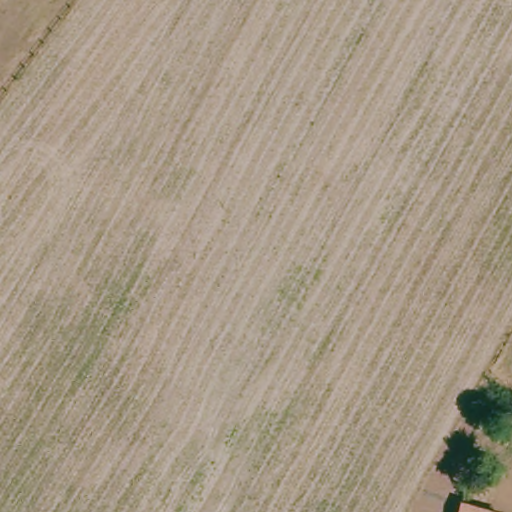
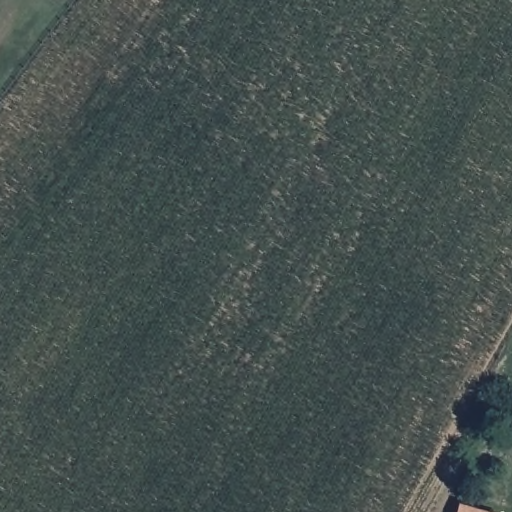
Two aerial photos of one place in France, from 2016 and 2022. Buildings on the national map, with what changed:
unchanged [(490,512),(464,512),(467,505),(490,512)]

